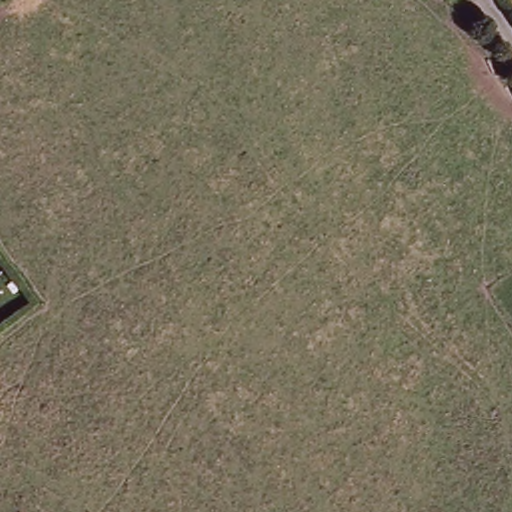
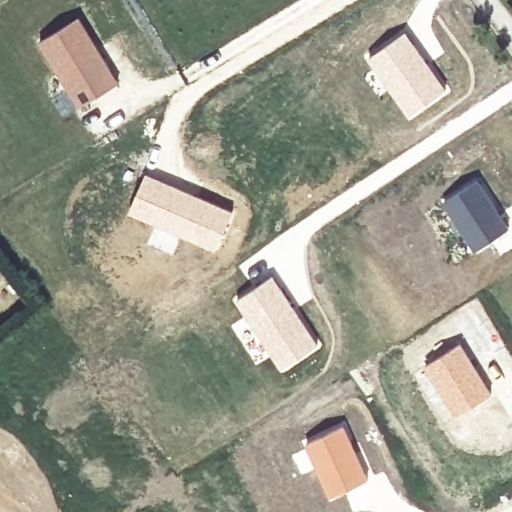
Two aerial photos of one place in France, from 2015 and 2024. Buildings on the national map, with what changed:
new [(79,15),(118,82),(80,104),(40,39),(79,15)]
new [(406,29),(448,89),(409,119),(367,57),(406,29)]
new [(145,172),(176,185),(232,211),(215,252),(180,236),(171,253),(146,242),(155,224),(128,210),(145,172)]
new [(476,177),(508,227),(475,249),(440,202),(476,177)]
new [(271,274),(321,344),(281,372),(260,337),(233,299),(271,274)]
new [(460,341),(491,392),(455,414),(425,364),(460,341)]
new [(302,447),(300,445),(342,423),(368,478),(327,497),(312,468),(301,474),(291,453),(302,447)]

